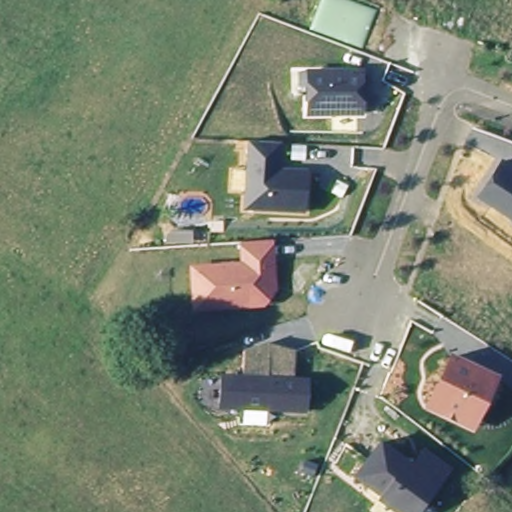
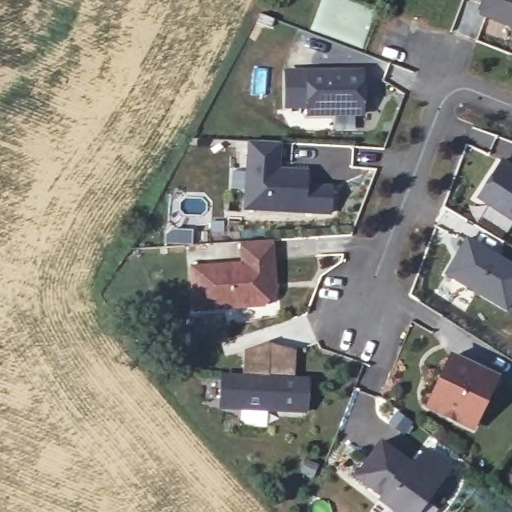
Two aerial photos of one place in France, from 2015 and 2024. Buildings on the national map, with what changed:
new [(512,0),(512,20),(488,10),(485,3),(486,0),(512,0)]
unchanged [(365,71),(366,115),(307,116),(306,71),(365,71)]
unchanged [(279,171),(309,174),(307,213),(247,209),(251,142),(281,144),(279,171)]
unchanged [(512,221),(476,197),(501,160),(512,167),(512,221)]
unchanged [(307,213),(309,185),(333,187),(331,215),(307,213)]
new [(512,304),(507,312),(445,275),(466,237),(512,264),(512,304)]
unchanged [(242,266),(241,244),(272,242),(274,283),(270,284),(271,297),(264,305),(195,310),(193,270),(242,266)]
unchanged [(244,377),(246,347),(272,345),(272,340),(297,347),(296,375),(308,376),(306,408),(243,405),(243,400),(221,399),(223,375),(244,377)]
unchanged [(453,357),(497,380),(479,415),(472,428),(428,405),(435,392),(453,357)]
unchanged [(386,502),(388,499),(357,475),(383,441),(415,466),(428,450),(452,470),(440,485),(418,512),(398,512),(386,502)]

